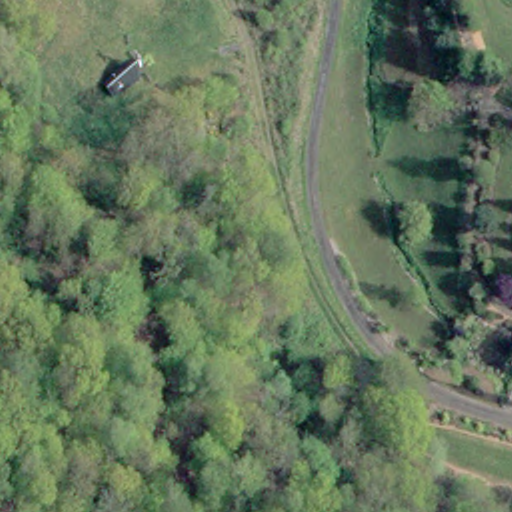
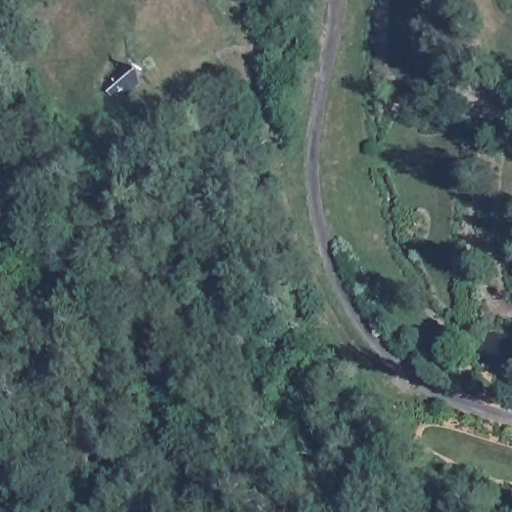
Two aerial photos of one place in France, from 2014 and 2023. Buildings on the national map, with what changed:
unchanged [(109,72),(136,50),(150,66),(124,88),(109,72)]

